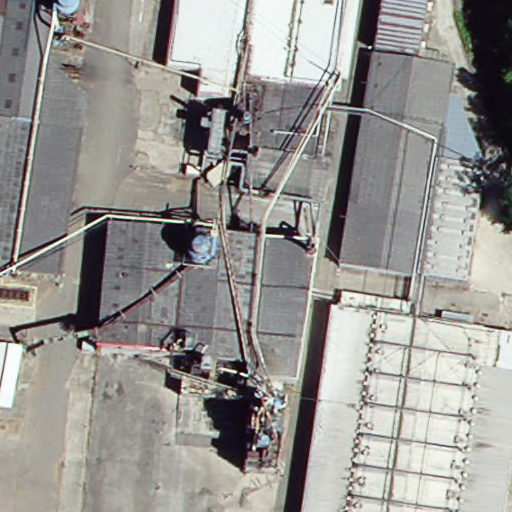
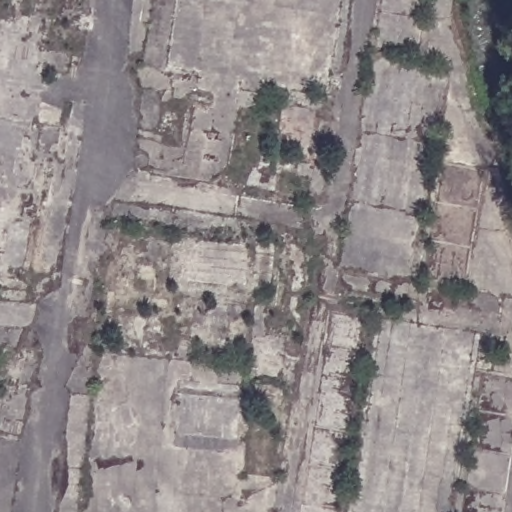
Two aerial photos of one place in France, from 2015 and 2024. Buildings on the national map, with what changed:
demolished [(40,63),(83,104),(60,283),(0,270),(0,0),(48,0),(47,8),(40,63)]
demolished [(245,141),(231,140),(233,107),(193,100),(197,76),(162,73),(171,0),(358,0),(341,101),(330,100),(312,201),(240,192),(245,141)]
demolished [(437,55),(435,68),(444,69),(425,161),(477,171),(460,291),(402,280),(332,269),(357,117),(368,57),(377,0),(423,0),(413,52),(437,55)]
demolished [(271,389),(242,385),(243,370),(195,363),(172,360),(155,480),(75,469),(103,227),(284,251),(271,389)]
demolished [(310,254),(294,391),(271,389),(284,251),(310,254)]
demolished [(323,312),(331,312),(333,297),(402,304),(400,323),(440,328),(440,321),(469,324),(468,330),(476,331),(476,336),(512,339),(512,355),(512,396),(495,512),(294,512),(323,312)]
demolished [(10,417),(0,415),(0,347),(18,350),(10,417)]
demolished [(155,480),(151,512),(70,512),(72,492),(75,469),(155,480)]

